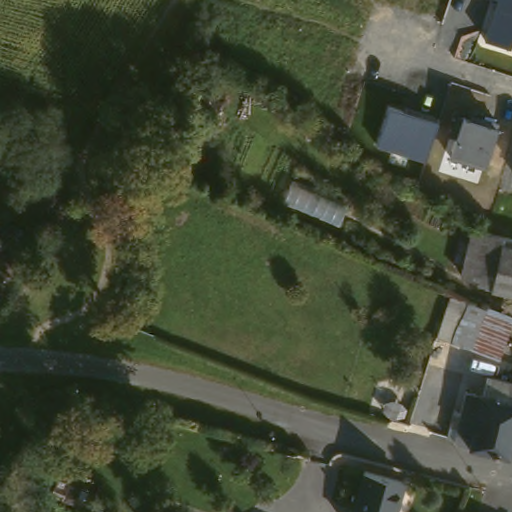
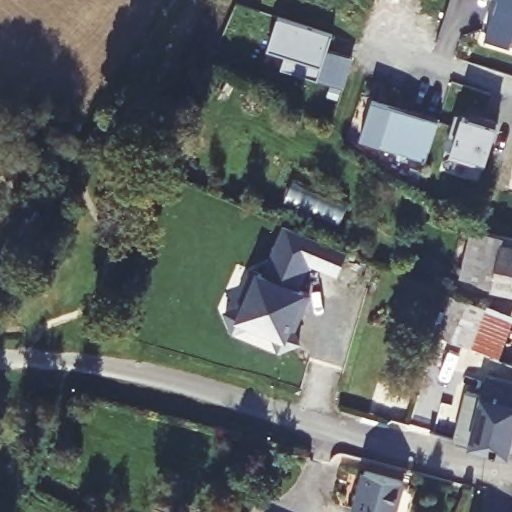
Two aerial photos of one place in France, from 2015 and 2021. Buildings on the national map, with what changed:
unchanged [(484,38),(496,0),(512,0),(512,41),(510,47),(484,38)]
new [(343,90),(316,81),(279,69),(284,56),(266,50),(276,17),(331,35),(326,50),(353,59),(343,90)]
unchanged [(389,108),(437,123),(425,161),(377,146),(389,108)]
unchanged [(462,116),(497,127),(486,164),(451,153),(462,116)]
new [(347,249),(337,276),(311,266),(302,287),(314,292),(297,331),(301,343),(278,352),(269,332),(251,326),(230,334),(223,309),(240,303),(256,267),(263,270),(285,222),(347,249)]
unchanged [(460,277),(470,236),(508,242),(512,243),(512,295),(492,291),(460,277)]
unchanged [(469,340),(436,331),(442,308),(459,313),(465,292),(484,301),(469,340)]
unchanged [(512,312),(512,321),(500,350),(492,347),(474,342),(469,340),(484,301),(490,302),(512,312)]
unchanged [(512,451),(511,453),(480,445),(460,441),(458,435),(453,433),(460,409),(465,410),(471,390),(486,393),(491,374),(512,380),(512,451)]
unchanged [(390,512),(348,512),(363,457),(403,470),(390,512)]

